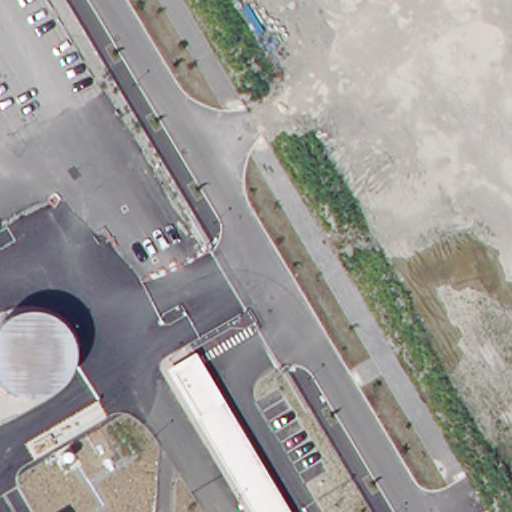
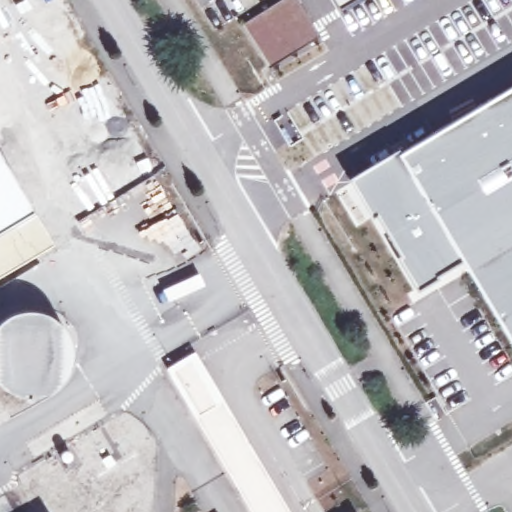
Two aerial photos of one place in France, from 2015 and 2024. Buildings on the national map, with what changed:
new [(298,0),(319,35),(269,66),(241,24),(278,0),(298,0)]
new [(462,261),(418,287),(354,180),(512,86),(512,346),(462,261)]
unchanged [(166,371),(194,354),(288,512),(250,512),(166,371)]

